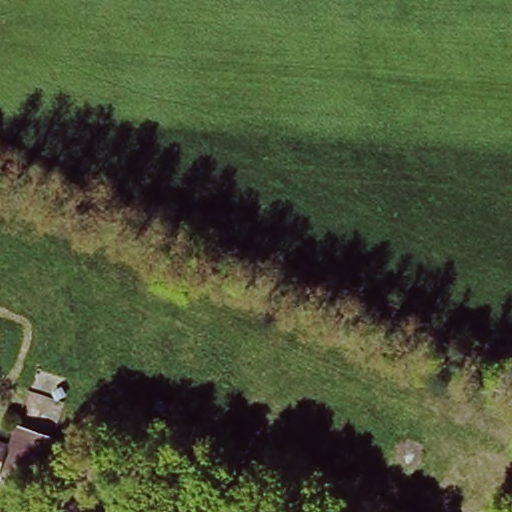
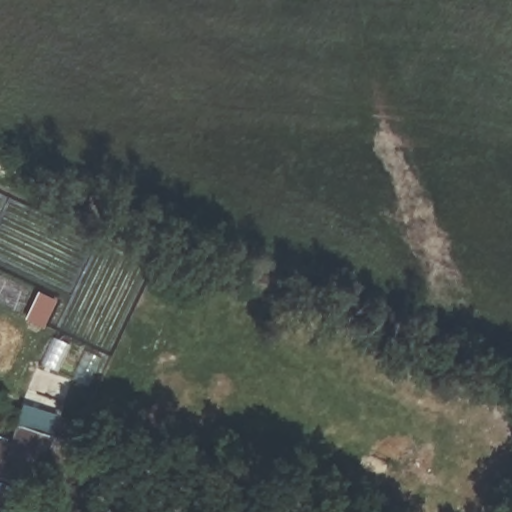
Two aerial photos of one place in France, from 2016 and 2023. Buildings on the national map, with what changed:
unchanged [(15,419),(77,442),(56,497),(0,477),(0,435),(7,437),(15,419)]

